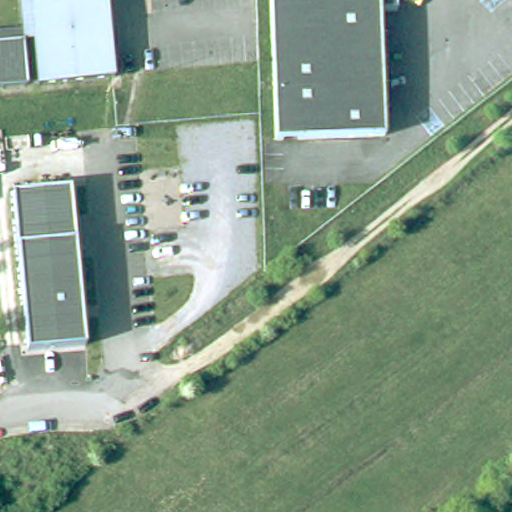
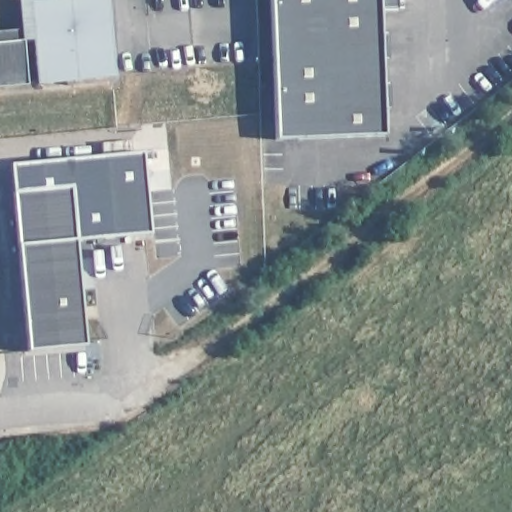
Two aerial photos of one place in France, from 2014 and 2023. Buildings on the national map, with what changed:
unchanged [(20,0),(34,0),(20,1),(20,0)]
unchanged [(109,0),(114,77),(35,82),(31,37),(21,38),(20,1),(34,0),(109,0)]
unchanged [(269,0),(395,0),(396,12),(378,13),(381,138),(273,141),(269,0)]
unchanged [(21,38),(25,84),(0,86),(0,40),(21,38)]
new [(9,164),(143,151),(151,233),(78,240),(73,187),(13,193),(9,164)]
unchanged [(73,187),(86,344),(26,350),(13,193),(73,187)]

